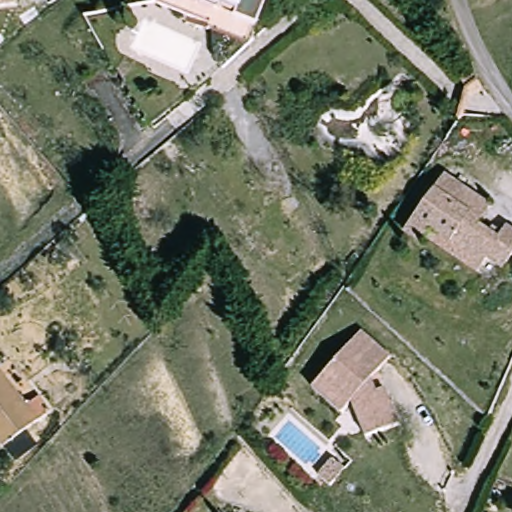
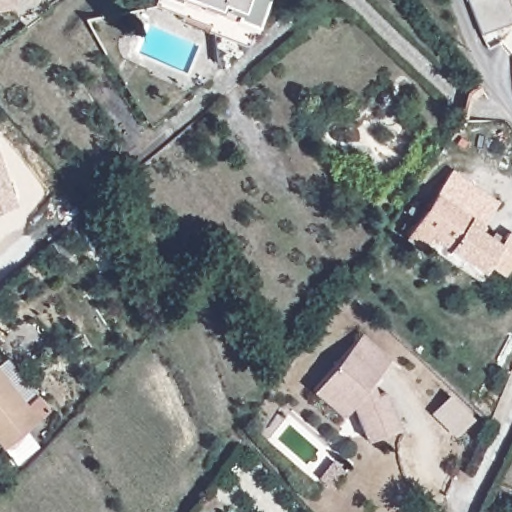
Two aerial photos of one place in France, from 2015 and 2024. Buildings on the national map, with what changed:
unchanged [(19,0),(0,3),(0,0),(19,0)]
unchanged [(185,5),(171,0),(186,0),(185,5)]
unchanged [(261,24),(241,21),(243,12),(203,0),(269,0),(261,24)]
new [(512,12),(512,22),(482,33),(469,0),(508,0),(512,12)]
unchanged [(458,124),(466,114),(474,104),(483,92),(492,102),(469,132),(458,124)]
new [(0,209),(0,157),(15,204),(0,209)]
unchanged [(435,238),(430,245),(412,231),(450,179),(492,210),(481,224),(503,241),(510,231),(512,233),(512,265),(506,273),(492,262),(484,272),(435,238)]
unchanged [(394,358),(376,378),(381,391),(393,386),(406,425),(374,435),(357,397),(344,410),(315,383),(365,330),(394,358)]
unchanged [(41,391),(53,406),(12,442),(0,428),(0,366),(30,401),(41,391)]
new [(453,403),(474,422),(456,441),(436,421),(453,403)]
unchanged [(346,486),(331,501),(319,490),(335,475),(346,486)]

